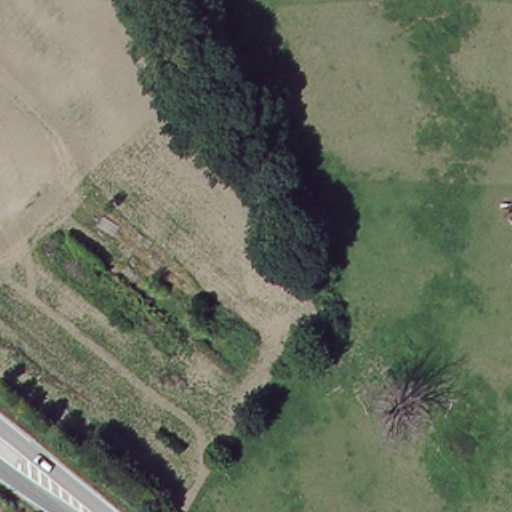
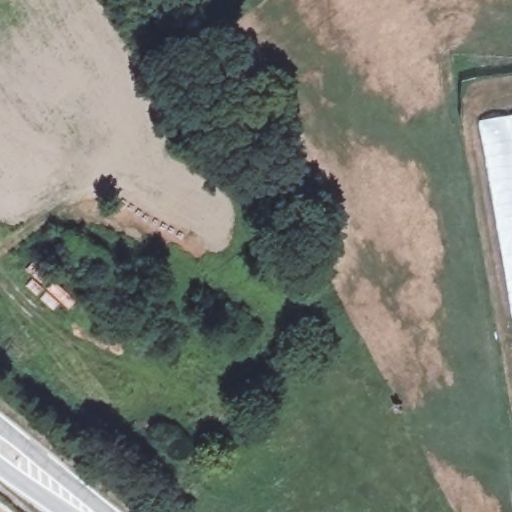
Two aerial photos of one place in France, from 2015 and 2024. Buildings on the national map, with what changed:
new [(512,320),(477,121),(512,116),(512,320)]

